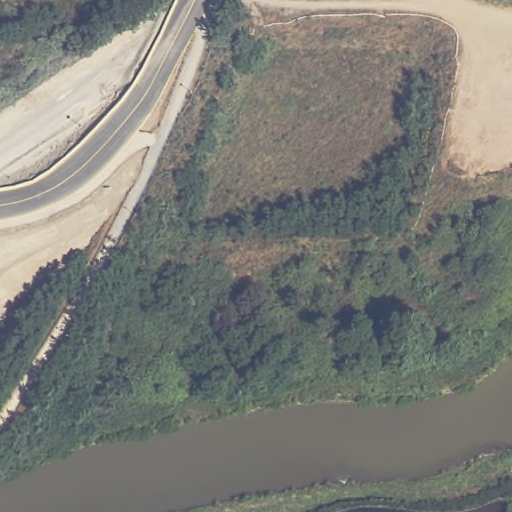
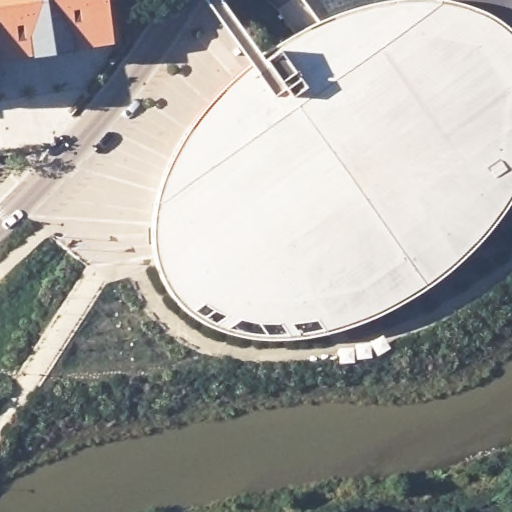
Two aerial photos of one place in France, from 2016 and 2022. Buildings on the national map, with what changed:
new [(107,4),(113,44),(0,60),(0,0),(122,0),(122,2),(107,4)]
new [(155,265),(151,245),(151,218),(156,194),(169,161),(191,125),(214,95),(239,71),(272,46),(297,30),(330,15),(366,3),(385,0),(448,0),(456,1),(482,10),(501,21),(512,31),(512,195),(491,224),(467,250),(445,270),(416,291),(380,312),(349,325),(323,332),(291,337),(266,338),(240,335),(213,328),(192,316),(175,301),(164,286),(155,265)]

